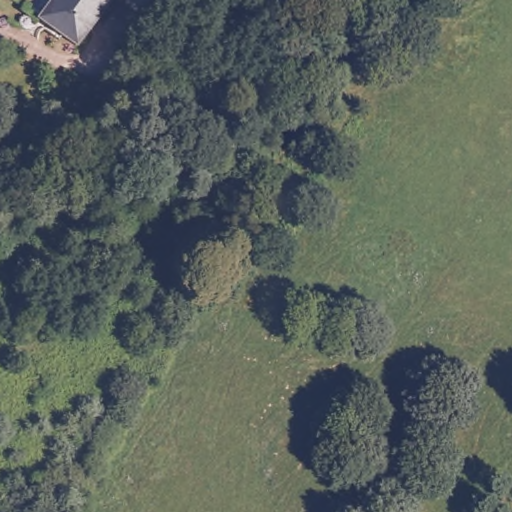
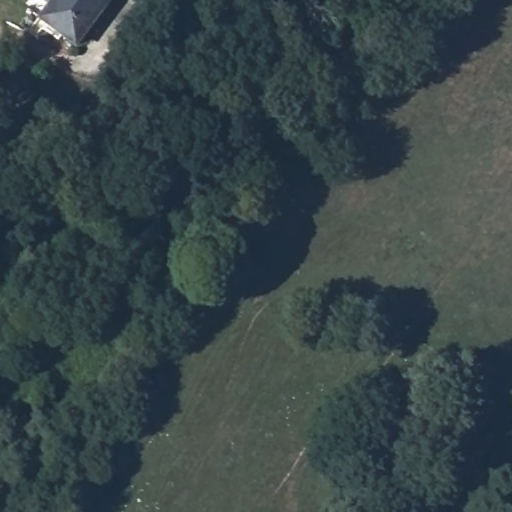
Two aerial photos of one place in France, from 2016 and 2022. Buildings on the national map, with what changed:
unchanged [(56,26),(49,34),(28,16),(39,0),(96,0),(70,36),(56,26)]

